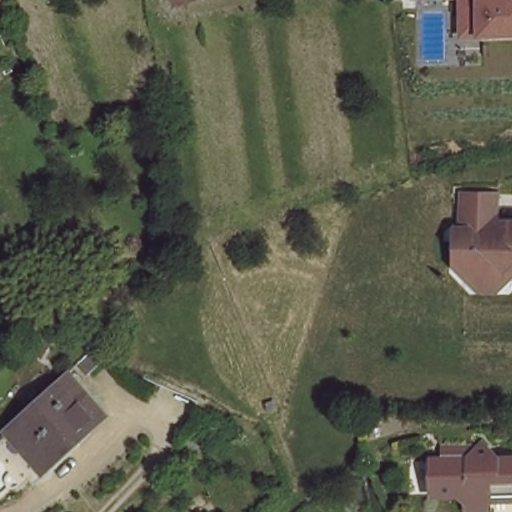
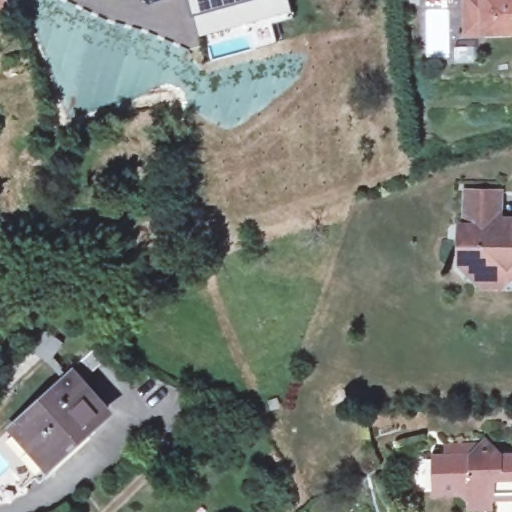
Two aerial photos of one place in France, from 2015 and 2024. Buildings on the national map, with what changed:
demolished [(187,7),(184,0),(207,0),(187,7)]
new [(293,12),(200,34),(191,0),(290,0),(293,12)]
unchanged [(512,33),(483,33),(465,35),(466,0),(512,0),(512,33)]
unchanged [(510,217),(512,220),(512,260),(499,273),(487,272),(465,272),(457,263),(457,225),(462,225),(463,191),(482,191),(498,191),(497,218),(510,217)]
unchanged [(43,475),(10,438),(67,385),(63,381),(93,353),(105,366),(86,383),(82,380),(72,390),(101,422),(43,475)]
unchanged [(461,495),(435,495),(435,461),(447,460),(446,448),(486,447),(486,445),(500,461),(512,461),(512,503),(495,503),(495,512),(470,512),(470,504),(461,495)]

